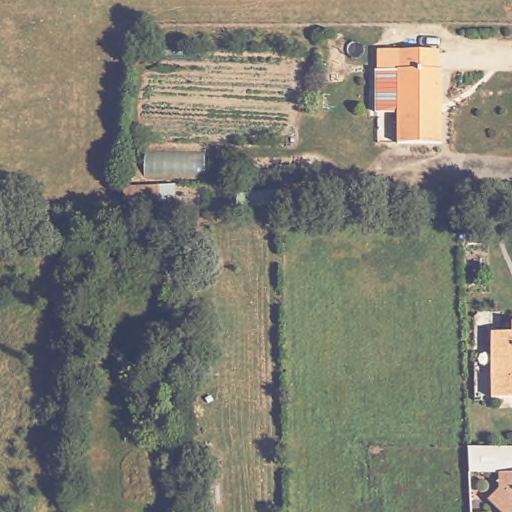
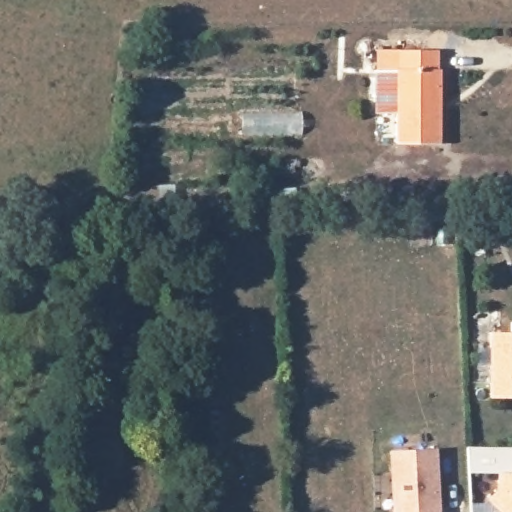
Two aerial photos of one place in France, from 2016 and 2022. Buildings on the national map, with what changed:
unchanged [(434,51),(435,69),(438,69),(439,143),(394,145),(391,71),(395,71),(393,52),(434,51)]
new [(280,191),(281,204),(238,209),(237,195),(280,191)]
unchanged [(512,400),(492,399),(492,334),(512,335),(512,400)]
unchanged [(465,446),(512,447),(512,477),(495,476),(468,474),(465,446)]
new [(441,512),(393,512),(389,451),(437,448),(441,512)]
unchanged [(512,512),(493,512),(485,504),(496,493),(495,476),(512,477),(512,512)]

